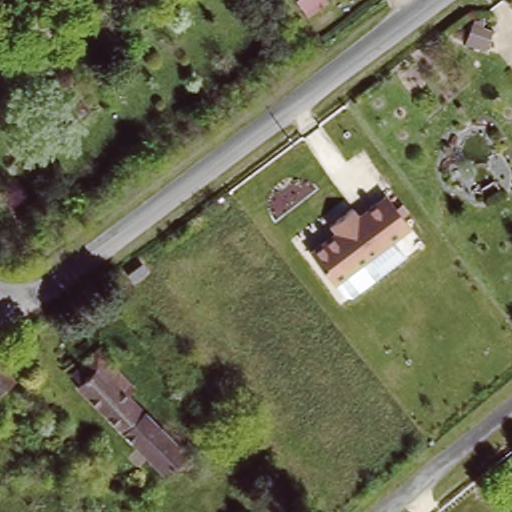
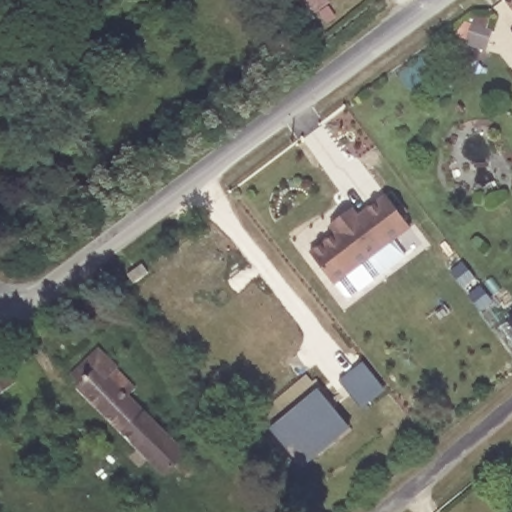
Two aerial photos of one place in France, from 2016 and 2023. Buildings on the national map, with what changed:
unchanged [(310,250),(333,232),(327,223),(351,206),(355,212),(384,193),(410,230),(335,283),(310,250)]
new [(464,265),(475,280),(464,289),(452,273),(464,265)]
new [(481,288),(490,299),(477,308),(470,297),(481,288)]
unchanged [(182,479),(174,470),(162,480),(77,391),(82,388),(74,380),(99,356),(113,370),(111,372),(133,395),(127,401),(183,460),(192,470),(182,479)]
new [(362,361),(385,390),(362,408),(340,381),(362,361)]
unchanged [(0,393),(0,366),(12,383),(0,393)]
new [(260,413),(307,373),(314,380),(317,377),(324,385),(317,389),(351,426),(304,467),(270,428),(260,413)]

